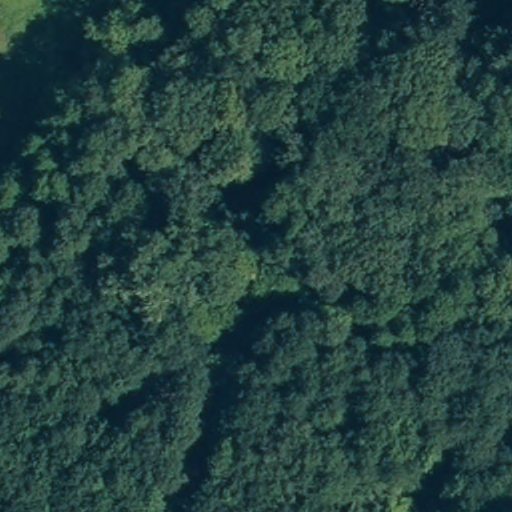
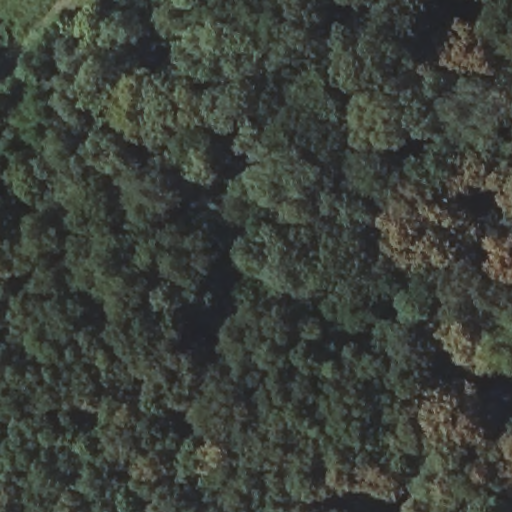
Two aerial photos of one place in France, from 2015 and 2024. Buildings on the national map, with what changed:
[]

